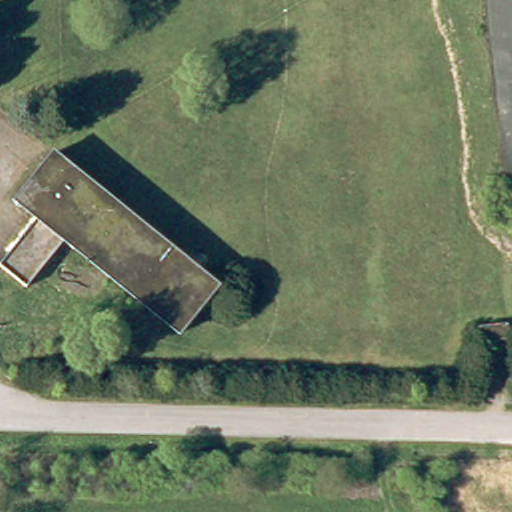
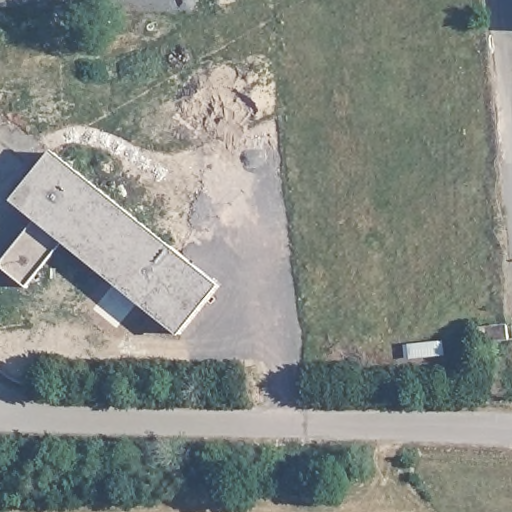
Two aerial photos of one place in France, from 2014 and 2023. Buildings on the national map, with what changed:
unchanged [(37,224),(20,209),(15,205),(24,195),(55,160),(218,289),(178,335),(63,244),(23,290),(2,272),(0,270),(0,268),(5,263),(37,224)]
unchanged [(480,326),(505,327),(505,345),(479,344),(480,326)]

